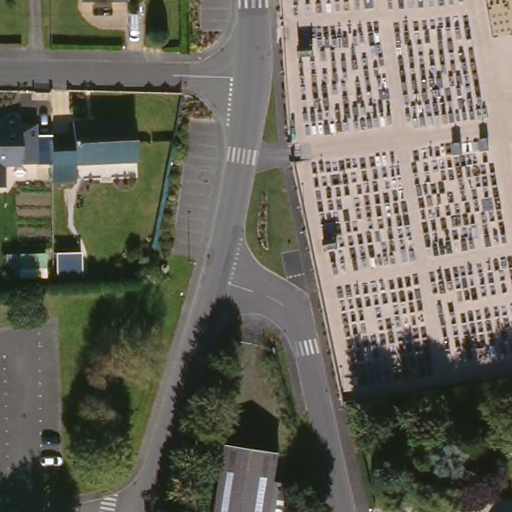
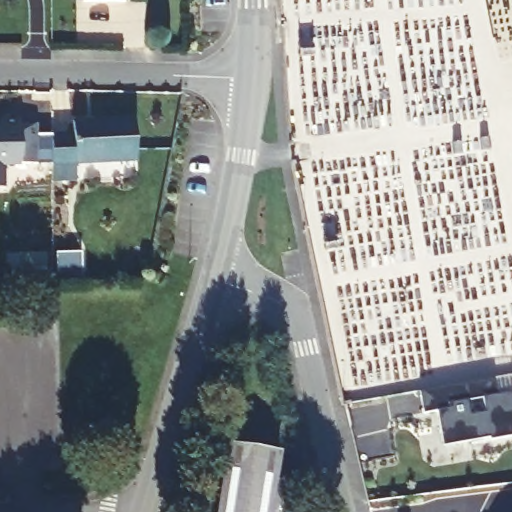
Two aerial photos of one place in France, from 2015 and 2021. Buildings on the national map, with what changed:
unchanged [(123,0),(124,3),(81,3),(80,0),(123,0)]
unchanged [(71,120),(134,121),(134,161),(71,161),(71,178),(49,177),(47,132),(48,132),(71,132),(71,120)]
unchanged [(6,166),(6,190),(0,190),(0,130),(1,130),(1,122),(21,121),(21,126),(37,126),(38,166),(6,166)]
unchanged [(292,121),(303,121),(304,141),(293,141),(292,121)]
new [(512,390),(512,436),(491,439),(490,437),(444,445),(438,409),(424,412),(420,391),(493,378),(496,394),(512,390)]
unchanged [(224,449),(271,454),(268,478),(286,480),(293,512),(215,512),(224,449)]

